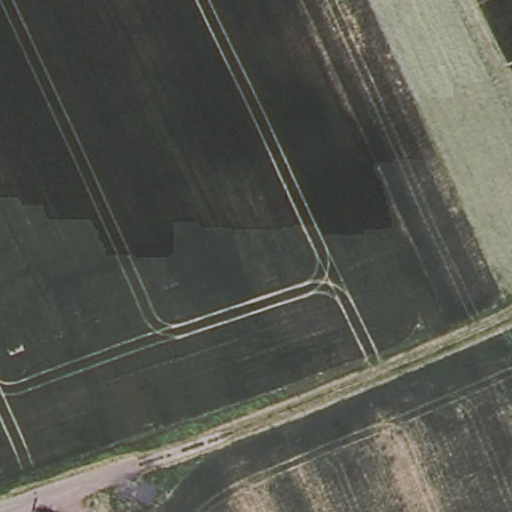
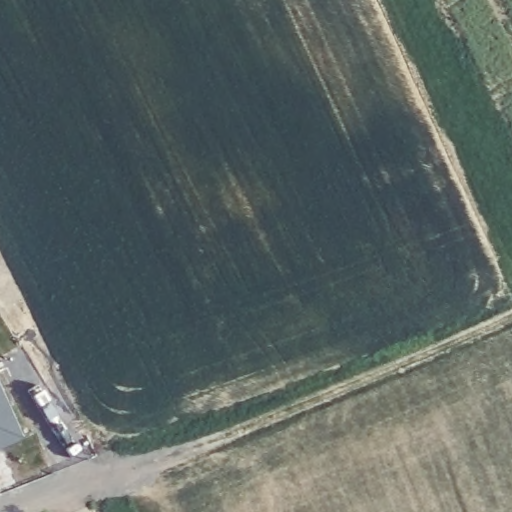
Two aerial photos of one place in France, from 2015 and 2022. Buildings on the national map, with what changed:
new [(28,440),(0,451),(0,381),(28,440)]

